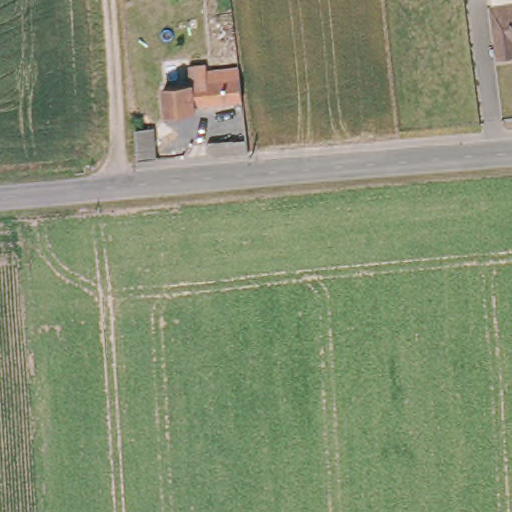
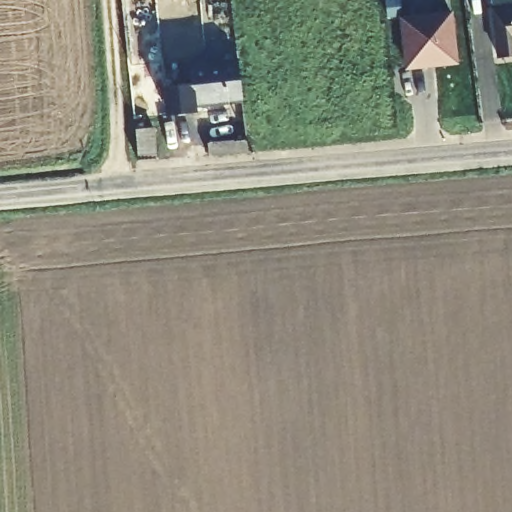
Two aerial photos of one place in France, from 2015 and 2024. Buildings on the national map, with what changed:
unchanged [(488,0),(512,0),(512,56),(494,58),(488,0)]
new [(455,57),(453,65),(409,64),(404,16),(450,14),(455,57)]
unchanged [(193,82),(192,63),(208,62),(208,67),(241,65),(251,149),(211,153),(209,140),(233,138),(230,100),(196,102),(196,109),(168,111),(166,84),(193,82)]
demolished [(201,116),(201,130),(188,131),(188,117),(201,116)]
unchanged [(149,125),(151,157),(133,159),(131,126),(149,125)]

